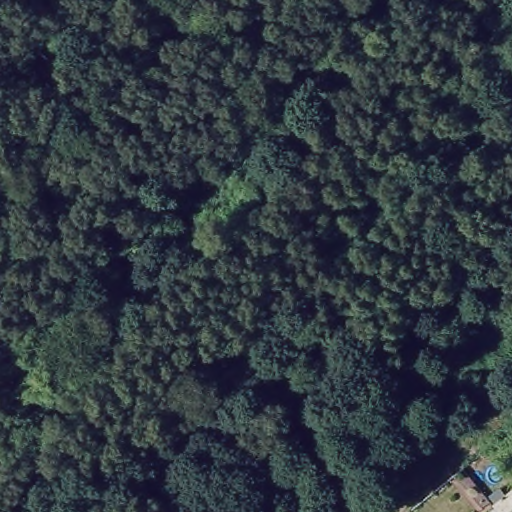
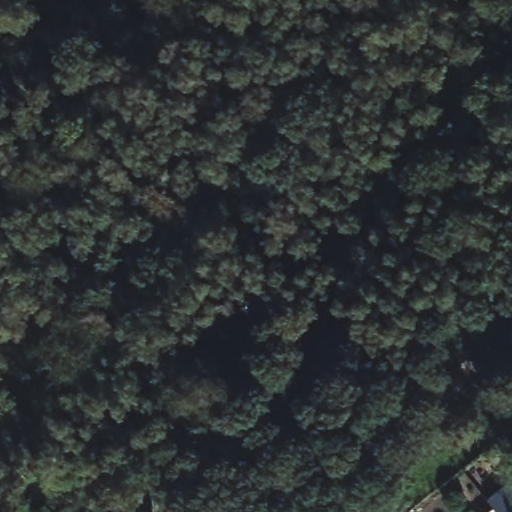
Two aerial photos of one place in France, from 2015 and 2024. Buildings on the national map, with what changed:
unchanged [(492,507),(512,492),(512,512),(496,512),(493,509),(492,507)]
unchanged [(496,512),(490,512),(493,509),(496,512)]

